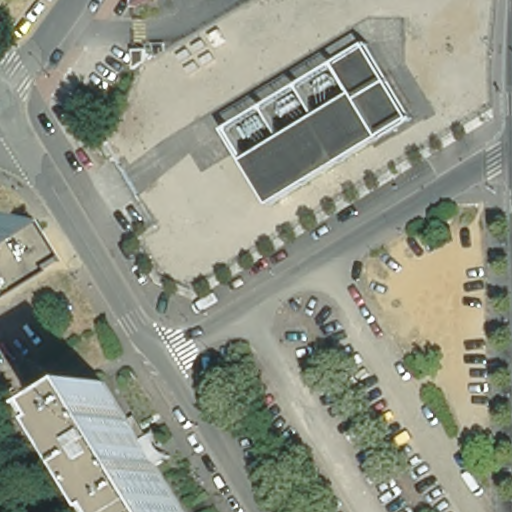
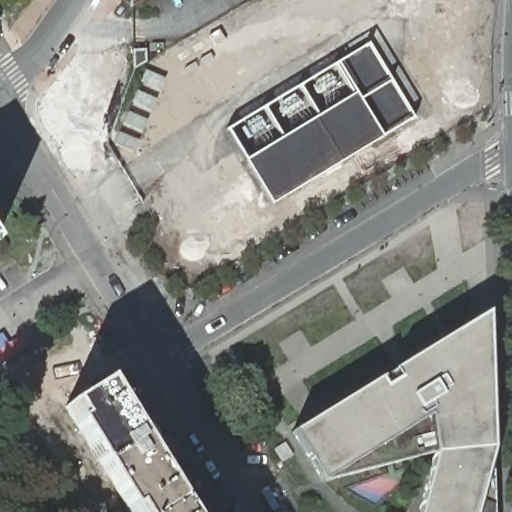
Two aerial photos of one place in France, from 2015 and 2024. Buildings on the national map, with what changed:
unchanged [(136,0),(145,0),(136,5),(136,0)]
unchanged [(368,34),(413,108),(271,195),(225,120),(368,34)]
new [(295,432),(489,312),(493,445),(475,512),(420,512),(435,453),(430,416),(323,482),(295,432)]
unchanged [(114,477),(108,468),(101,458),(70,407),(78,403),(69,388),(75,385),(84,400),(111,382),(134,419),(140,416),(144,422),(147,428),(152,437),(166,460),(166,461),(162,463),(185,501),(166,512),(135,512),(120,487),(114,477)]
new [(430,416),(435,453),(323,482),(430,416)]
new [(493,445),(496,512),(475,512),(493,445)]
unchanged [(185,501),(190,509),(192,512),(166,512),(185,501)]

